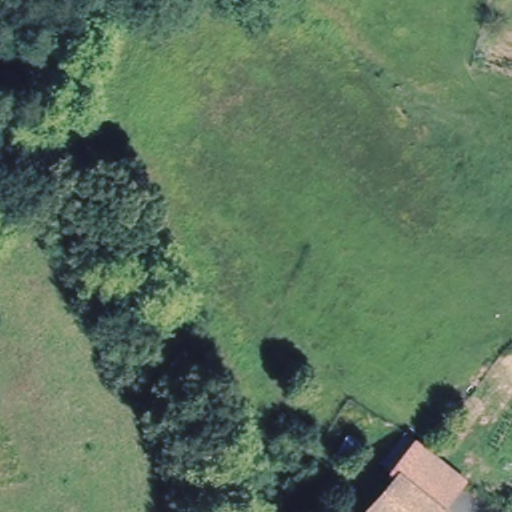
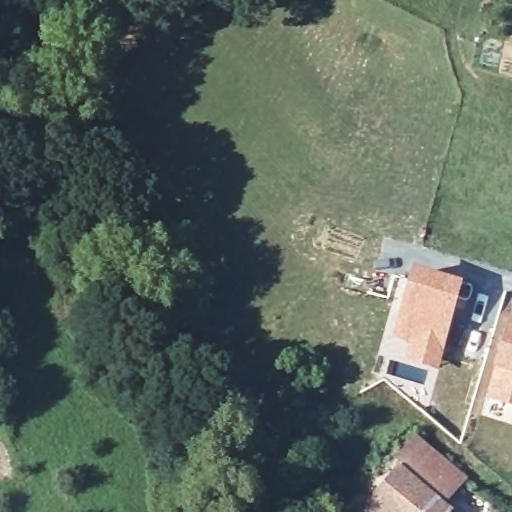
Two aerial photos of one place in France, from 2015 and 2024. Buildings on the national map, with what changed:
new [(411,268),(464,282),(437,370),(404,361),(408,345),(390,339),(411,268)]
new [(512,310),(512,406),(485,398),(512,310)]
unchanged [(419,436),(428,444),(466,475),(445,501),(450,506),(444,512),(369,512),(405,470),(396,464),(419,436)]

